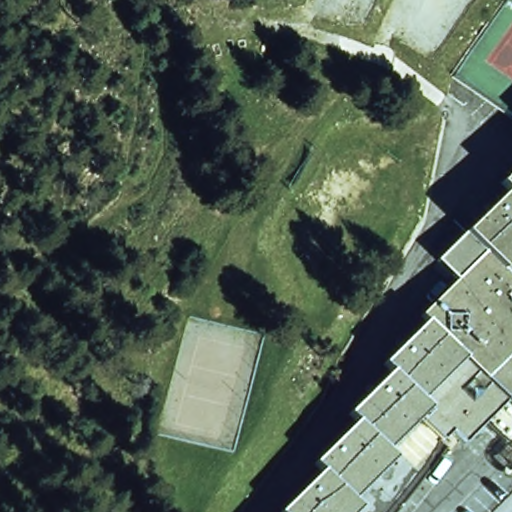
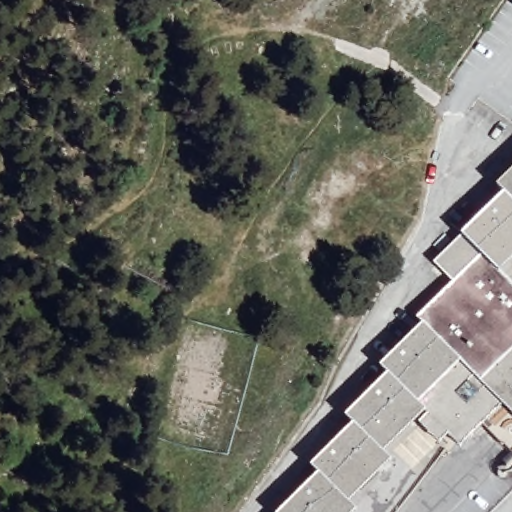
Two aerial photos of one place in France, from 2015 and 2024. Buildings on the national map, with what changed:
unchanged [(460,446),(421,406),(379,447),(386,455),(344,497),(351,505),(345,512),(280,512),(321,472),(313,464),(356,422),(348,414),(391,373),(383,365),(426,324),(420,318),(456,283),(437,264),(508,195),(500,187),(512,176),(512,454),(482,423),(460,446)]

